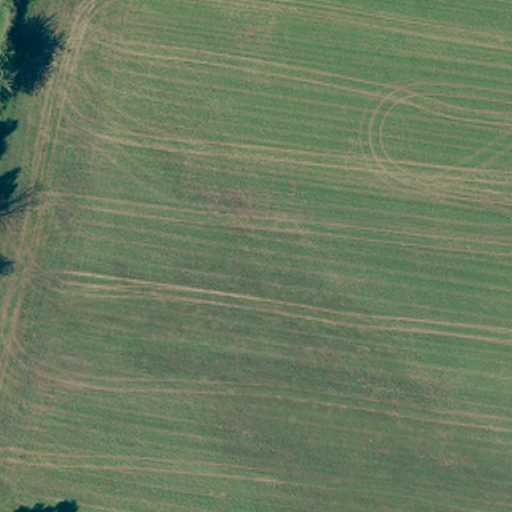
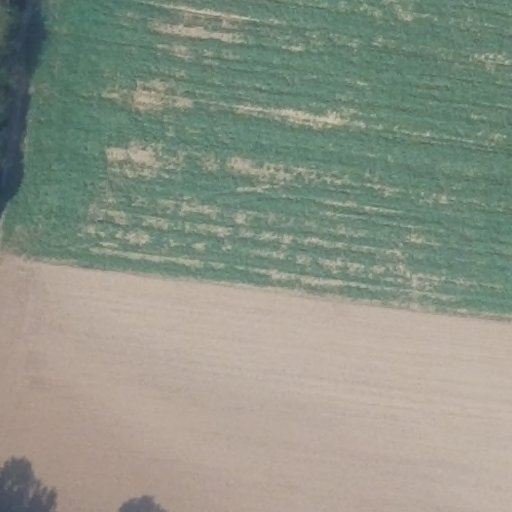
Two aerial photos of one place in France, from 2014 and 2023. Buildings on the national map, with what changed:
[]

